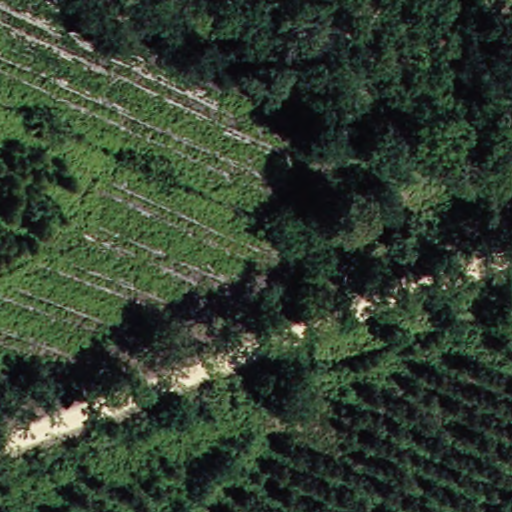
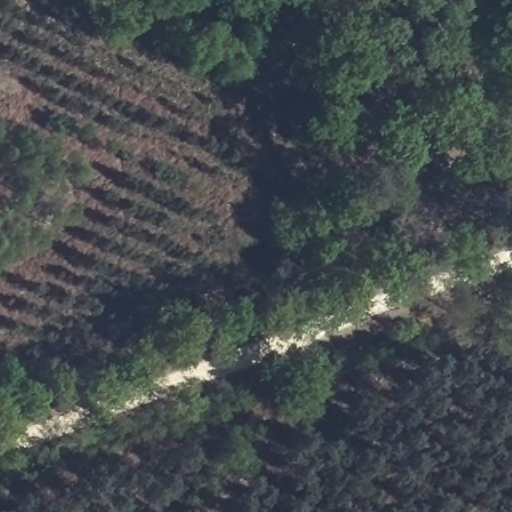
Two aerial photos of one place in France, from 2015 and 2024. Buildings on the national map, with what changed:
[]

